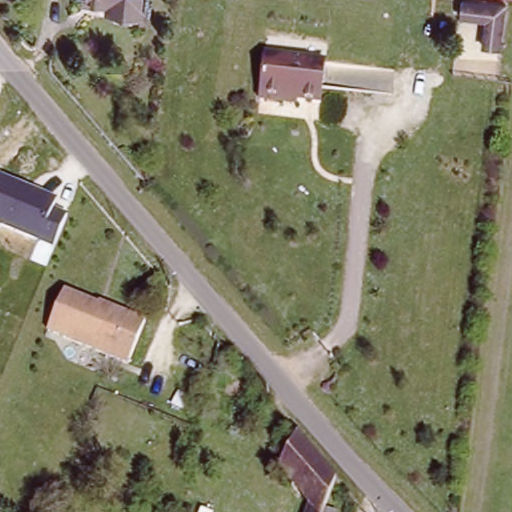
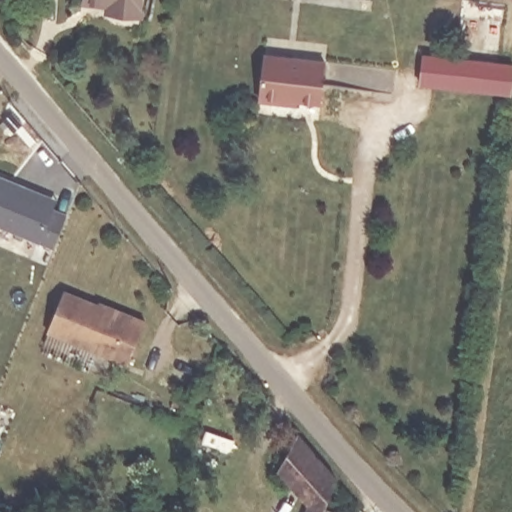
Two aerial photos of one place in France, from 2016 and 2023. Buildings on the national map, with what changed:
unchanged [(110,1),(104,0),(146,0),(144,14),(118,12),(109,11),(110,1)]
unchanged [(505,6),(500,52),(484,51),(487,20),(459,17),(461,2),(505,6)]
unchanged [(283,102),(260,99),(265,52),(324,59),(320,100),(295,97),(295,103),(283,102)]
new [(510,98),(421,87),(425,57),(512,68),(512,85),(510,98)]
unchanged [(55,209),(69,214),(55,245),(0,223),(0,176),(58,199),(55,209)]
unchanged [(64,295),(107,311),(108,308),(144,322),(127,365),(49,333),(64,295)]
unchanged [(286,471),(302,432),(340,477),(326,512),(306,512),(313,493),(286,471)]

